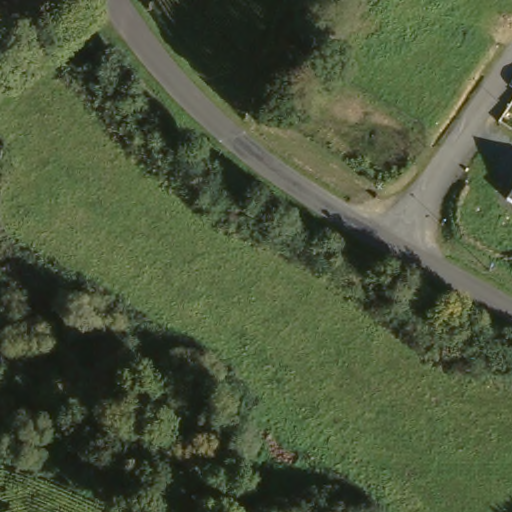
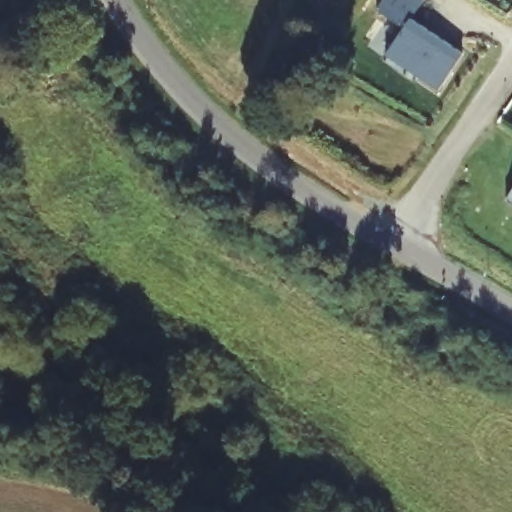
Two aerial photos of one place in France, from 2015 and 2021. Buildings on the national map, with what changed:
new [(387,57),(404,27),(377,11),(384,0),(423,0),(411,18),(464,54),(439,91),(387,57)]
unchanged [(512,192),(512,207),(506,202),(512,192)]

